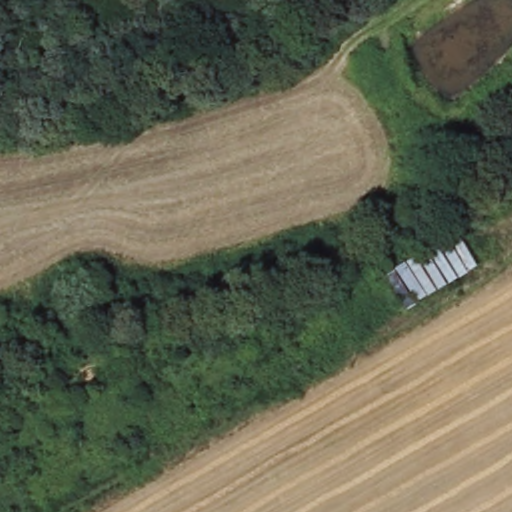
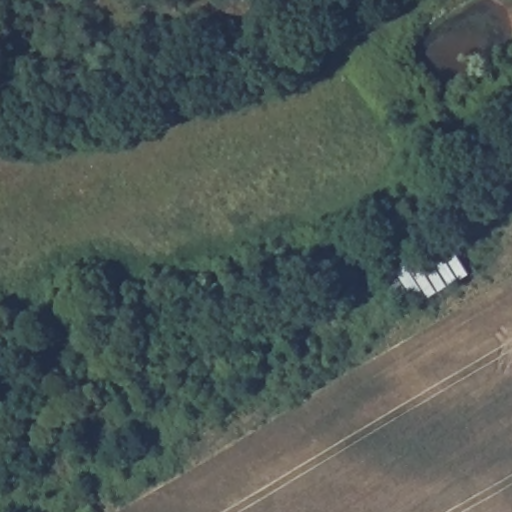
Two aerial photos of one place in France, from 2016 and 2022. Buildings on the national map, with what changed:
unchanged [(502,255),(408,308),(385,273),(480,216),(502,255)]

